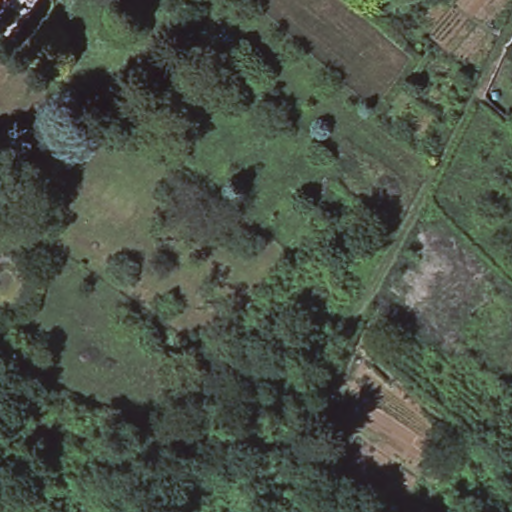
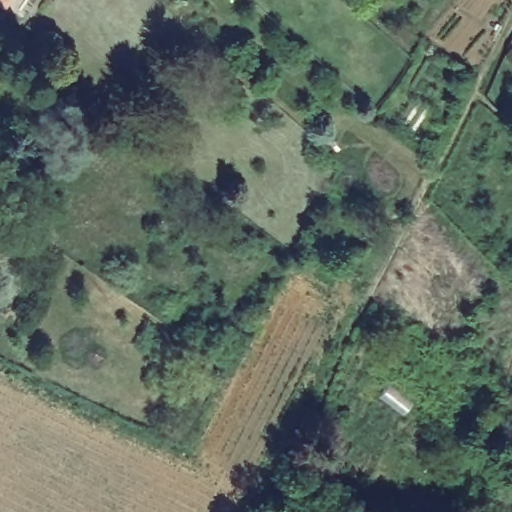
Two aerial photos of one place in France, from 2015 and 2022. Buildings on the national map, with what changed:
unchanged [(309,434),(318,441),(312,454),(302,447),(309,434)]

